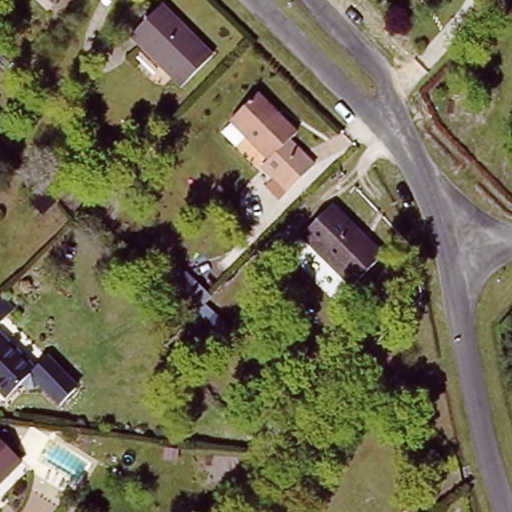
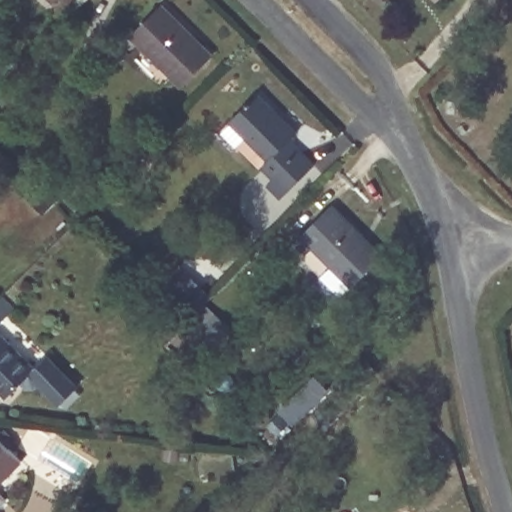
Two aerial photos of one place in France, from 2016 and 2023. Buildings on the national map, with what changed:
unchanged [(51,0),(49,2),(47,0),(51,0)]
unchanged [(166,0),(214,50),(180,82),(131,30),(163,0),(166,0)]
unchanged [(261,165),(267,159),(227,119),(257,91),(296,131),(287,140),(300,152),(314,167),(287,192),(273,178),(261,165)]
unchanged [(302,234),(335,200),(386,250),(352,284),(302,234)]
unchanged [(0,321),(0,312),(7,316),(0,321)]
unchanged [(50,352),(80,384),(54,405),(30,378),(4,399),(0,396),(0,332),(30,365),(50,352)]
unchanged [(0,481),(0,428),(27,454),(0,481)]

